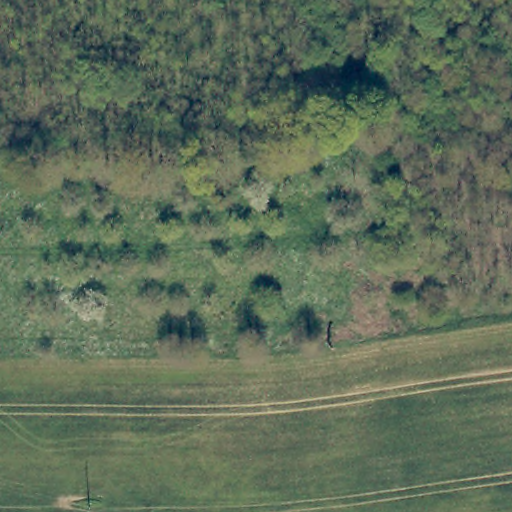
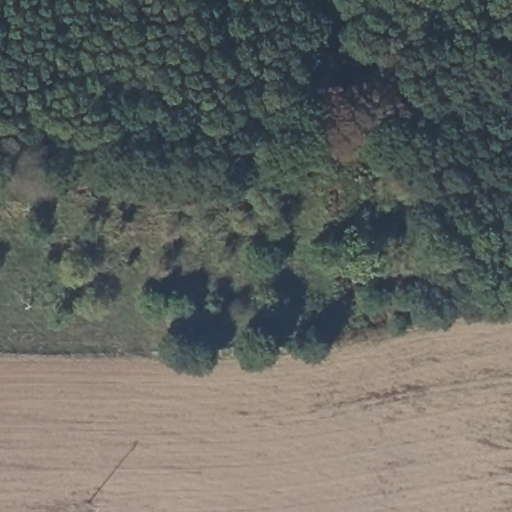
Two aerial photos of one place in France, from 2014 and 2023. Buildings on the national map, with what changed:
[]

